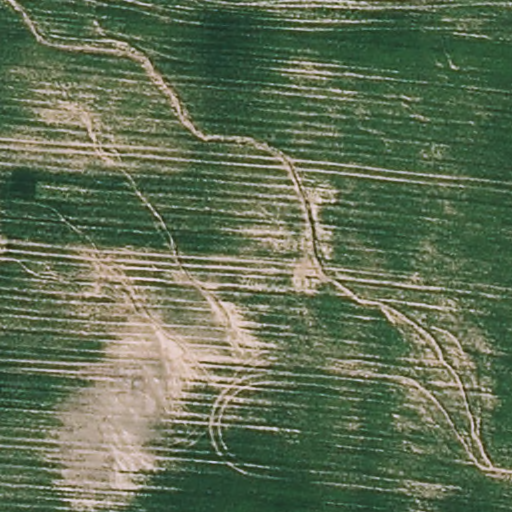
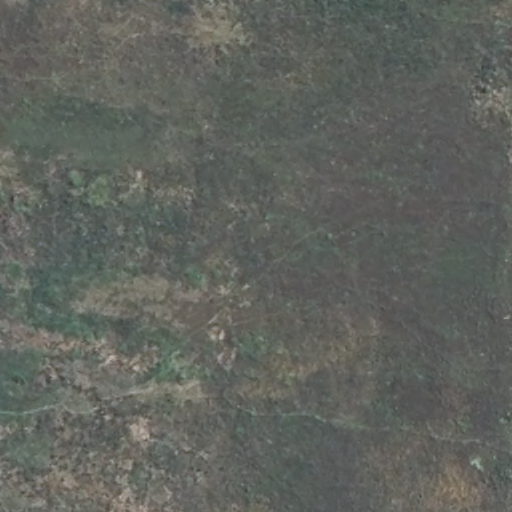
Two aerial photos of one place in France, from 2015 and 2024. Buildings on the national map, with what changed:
[]

